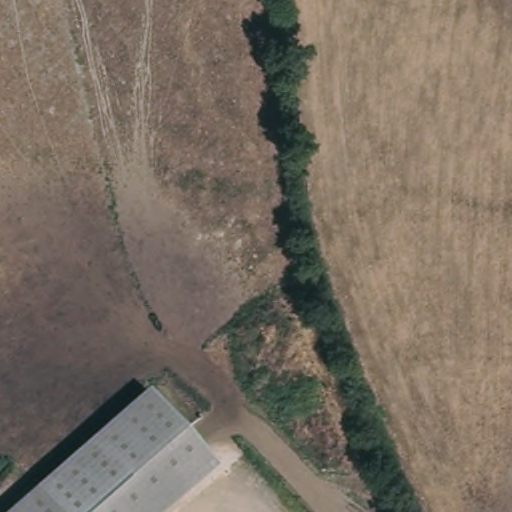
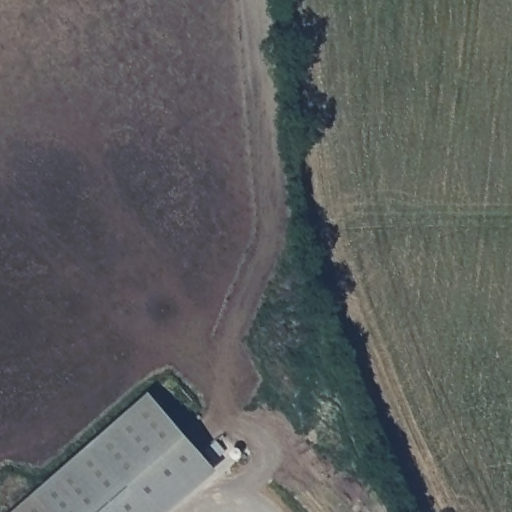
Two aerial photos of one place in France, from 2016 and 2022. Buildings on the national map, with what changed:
unchanged [(216,471),(170,512),(13,512),(149,393),(216,471)]

